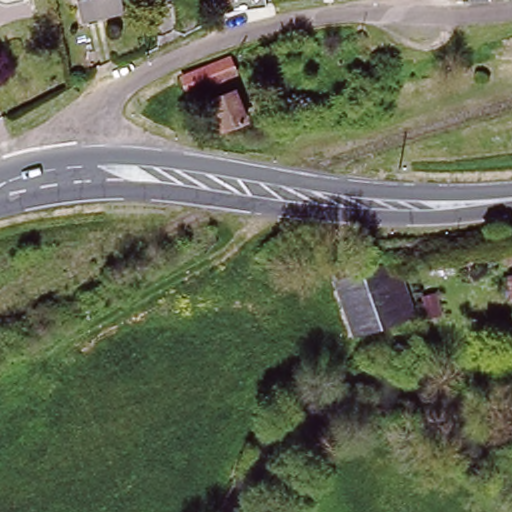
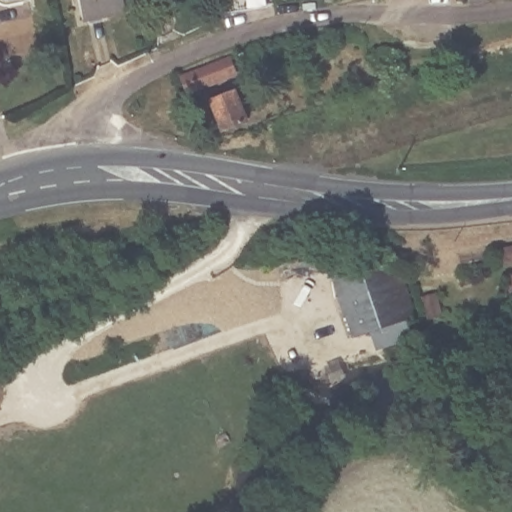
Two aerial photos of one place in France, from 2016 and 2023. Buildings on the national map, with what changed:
unchanged [(126,10),(107,13),(85,16),(82,0),(125,0),(126,10)]
unchanged [(267,16),(236,19),(233,0),(266,0),(267,16)]
unchanged [(492,3),(473,5),(472,0),(491,0),(492,3)]
unchanged [(234,62),(239,79),(192,91),(187,73),(234,62)]
unchanged [(237,90),(247,123),(224,130),(214,96),(237,90)]
unchanged [(505,259),(512,258),(512,273),(507,273),(505,259)]
unchanged [(400,259),(417,313),(356,333),(339,279),(400,259)]
unchanged [(512,282),(512,297),(509,283),(512,282)]
unchanged [(436,300),(442,320),(431,324),(425,303),(436,300)]

